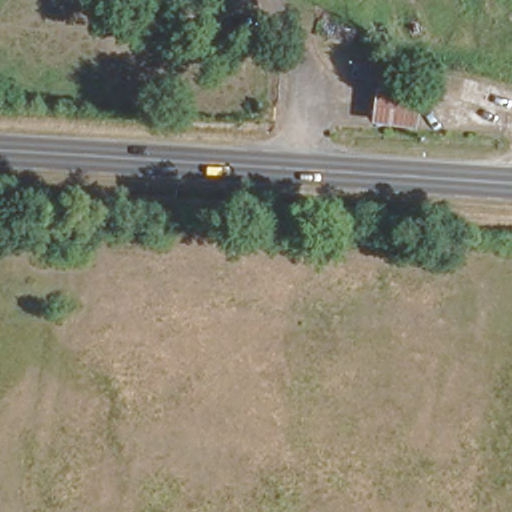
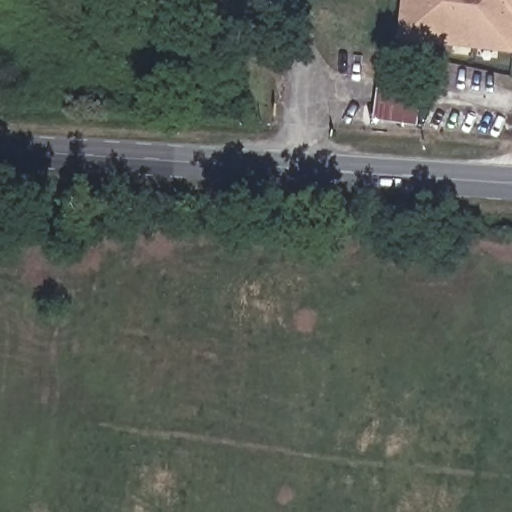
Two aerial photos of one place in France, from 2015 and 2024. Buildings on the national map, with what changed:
new [(401,0),(512,0),(512,54),(397,45),(401,0)]
unchanged [(341,77),(343,60),(358,62),(357,79),(341,77)]
unchanged [(415,129),(378,124),(381,88),(381,82),(420,87),(419,97),(415,129)]

